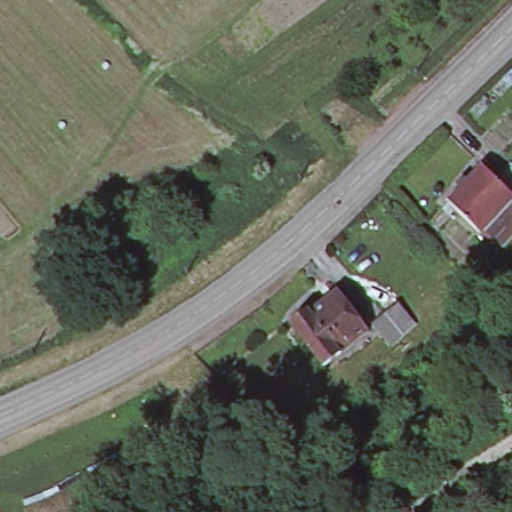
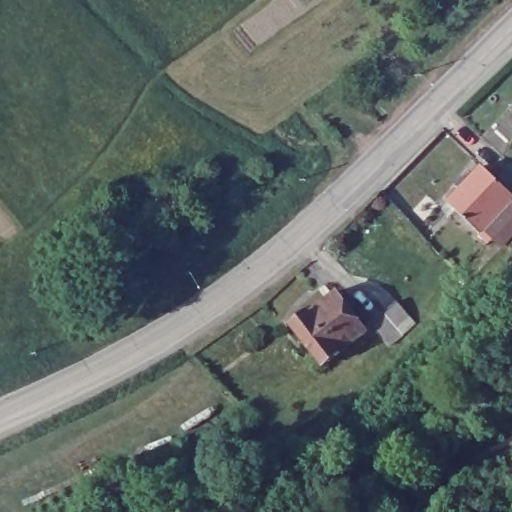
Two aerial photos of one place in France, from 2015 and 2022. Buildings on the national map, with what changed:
unchanged [(437,203),(473,169),(487,182),(502,165),(512,174),(512,228),(492,249),(478,235),(473,241),(467,236),(470,234),(437,203)]
unchanged [(287,327),(287,322),(298,315),(302,315),(305,315),(332,293),(363,333),(318,369),(285,329),(287,327)]
unchanged [(366,326),(379,314),(392,303),(412,325),(398,336),(385,348),(366,326)]

